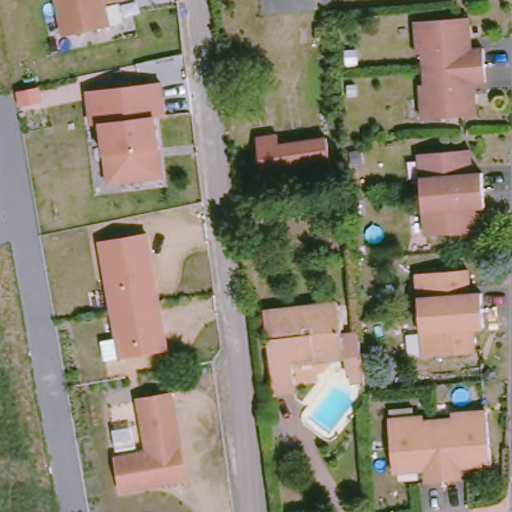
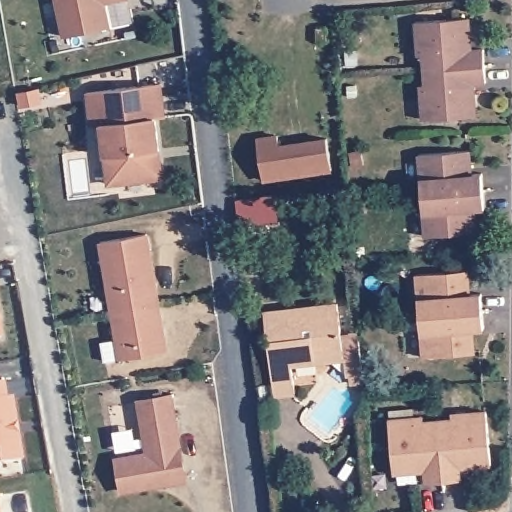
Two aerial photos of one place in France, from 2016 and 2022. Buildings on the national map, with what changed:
unchanged [(104,4),(110,27),(64,36),(58,0),(129,0),(129,1),(104,4)]
unchanged [(475,82),(477,115),(423,117),(421,70),(427,70),(426,56),(419,56),(418,22),(470,19),(472,50),(484,49),(486,82),(475,82)]
unchanged [(158,81),(163,114),(153,115),(160,175),(106,182),(98,122),(89,124),(85,90),(158,81)]
unchanged [(329,158),(259,167),(254,134),(278,130),(279,140),(326,132),(329,158)]
unchanged [(470,210),(472,231),(419,235),(412,154),(463,150),(466,174),(479,174),(482,209),(470,210)]
unchanged [(256,224),(252,199),(266,197),(269,222),(256,224)]
unchanged [(143,230),(153,279),(151,280),(158,323),(161,323),(166,345),(120,354),(98,238),(143,230)]
unchanged [(467,332),(471,361),(417,365),(409,272),(461,267),(463,297),(475,296),(479,331),(467,332)]
unchanged [(338,302),(344,331),(361,331),(364,386),(351,386),(346,360),(293,366),(296,395),(271,397),(262,312),(338,302)]
new [(1,338),(0,339),(0,332),(1,338)]
new [(4,383),(6,398),(13,397),(23,460),(0,463),(0,384),(4,383)]
unchanged [(121,457),(148,452),(141,400),(168,396),(181,481),(126,489),(121,457)]
unchanged [(463,466),(463,479),(426,482),(425,469),(391,472),(387,416),(423,413),(423,418),(457,416),(456,411),(488,408),(492,464),(463,466)]

